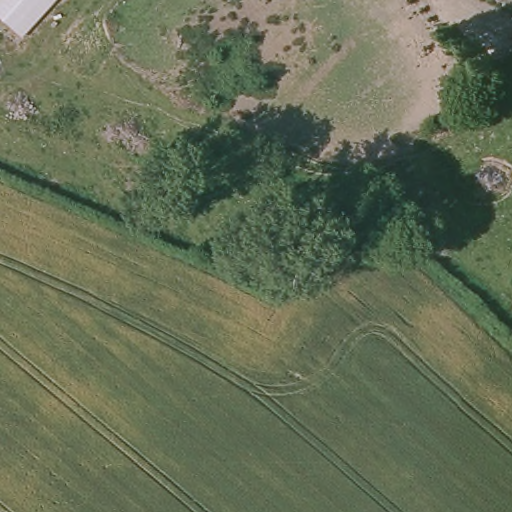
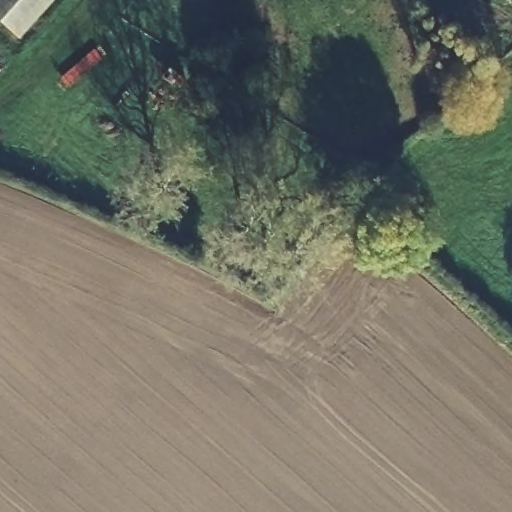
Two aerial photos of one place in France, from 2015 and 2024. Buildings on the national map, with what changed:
unchanged [(20,38),(0,20),(0,0),(54,0),(20,38)]

